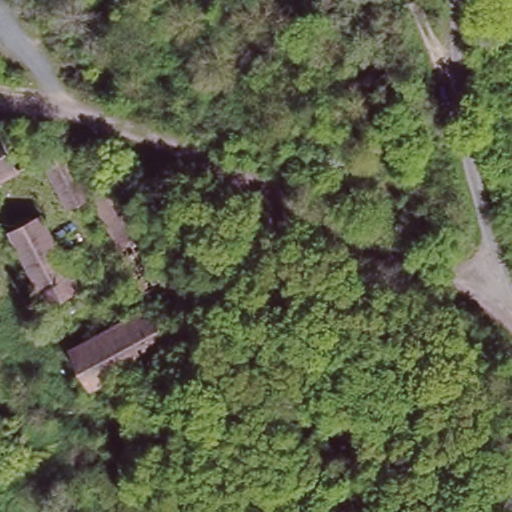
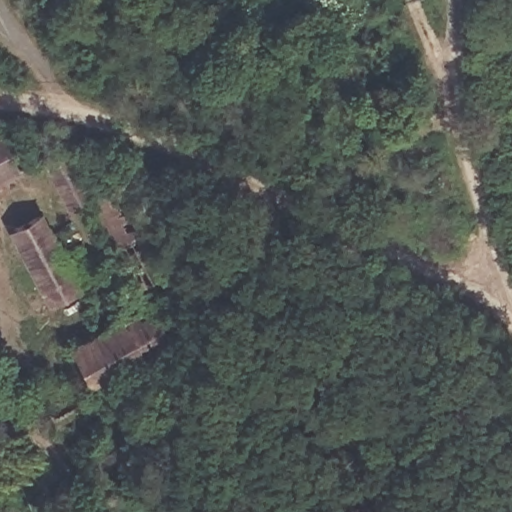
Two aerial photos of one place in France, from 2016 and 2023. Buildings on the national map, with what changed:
unchanged [(20,172),(0,183),(0,137),(20,172)]
unchanged [(75,212),(43,159),(63,146),(95,201),(75,212)]
unchanged [(99,397),(72,348),(152,304),(95,201),(120,187),(199,336),(108,381),(110,391),(99,397)]
unchanged [(88,289),(57,308),(13,234),(45,215),(88,289)]

